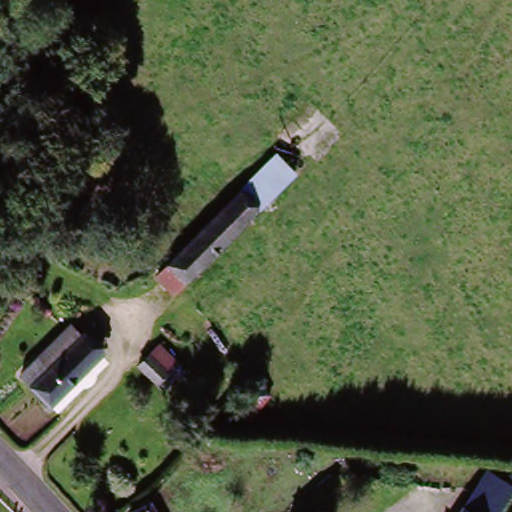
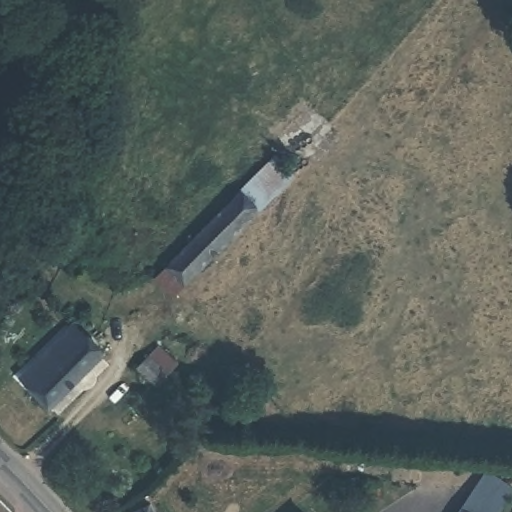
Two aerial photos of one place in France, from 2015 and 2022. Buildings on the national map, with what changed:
unchanged [(292,179),(167,292),(150,274),(275,160),(292,179)]
unchanged [(22,381),(75,335),(87,345),(94,341),(102,352),(97,355),(104,363),(49,409),(34,392),(26,385),(22,381)]
unchanged [(156,392),(132,373),(157,345),(180,366),(156,392)]
unchanged [(235,409),(254,386),(271,400),(252,424),(235,409)]
unchanged [(512,484),(512,502),(505,512),(466,512),(460,507),(487,467),(512,484)]
unchanged [(460,507),(466,512),(456,512),(460,507)]
unchanged [(154,510),(154,512),(151,512),(154,510)]

